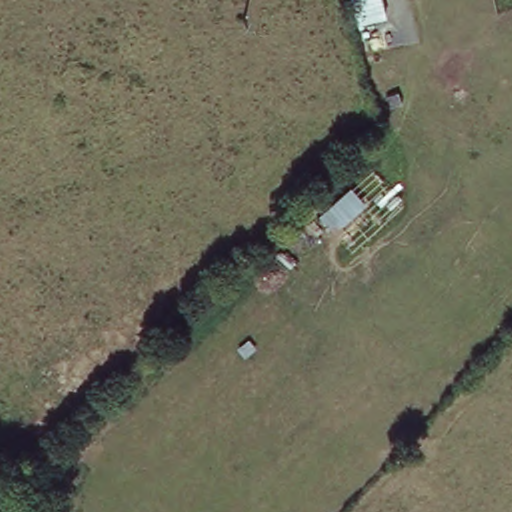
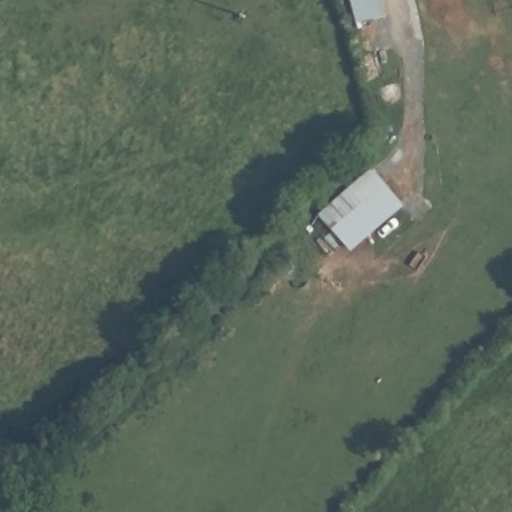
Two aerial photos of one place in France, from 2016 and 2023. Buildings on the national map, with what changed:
unchanged [(387,19),(355,26),(349,0),(382,0),(387,19)]
new [(374,169),(408,209),(352,256),(321,215),(374,169)]

